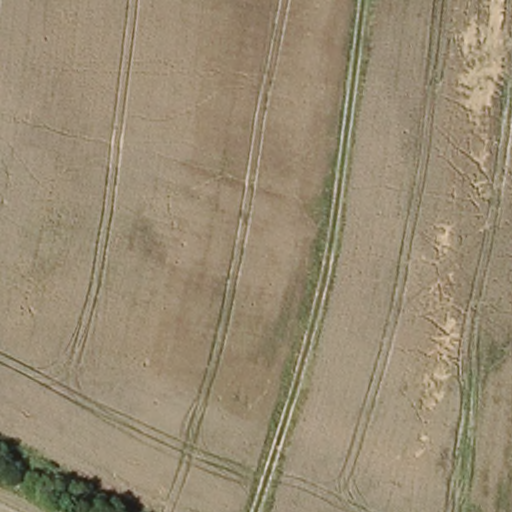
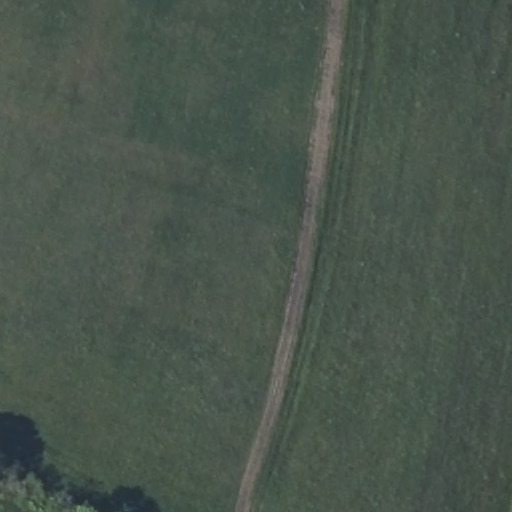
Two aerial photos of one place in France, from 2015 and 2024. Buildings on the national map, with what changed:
[]

